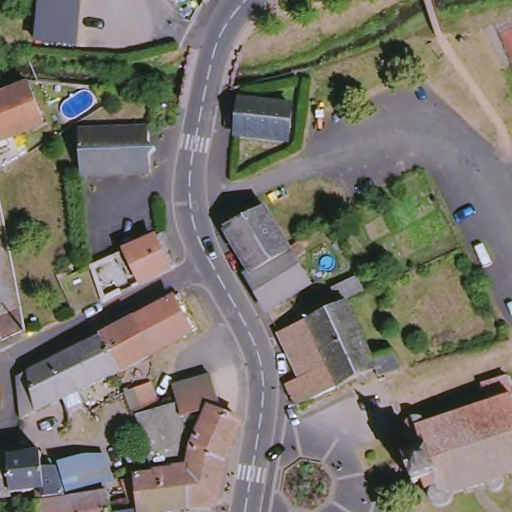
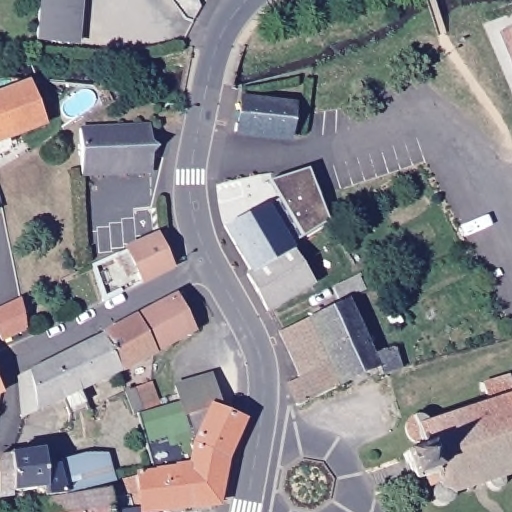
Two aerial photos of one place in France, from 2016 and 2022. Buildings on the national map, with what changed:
unchanged [(80,42),(40,39),(43,0),(83,0),(80,42)]
unchanged [(182,13),(172,0),(199,0),(204,10),(195,25),(182,13)]
unchanged [(29,84),(45,125),(0,144),(0,96),(29,84)]
unchanged [(292,107),(289,141),(237,135),(240,101),(292,107)]
unchanged [(87,176),(86,132),(157,131),(157,145),(163,152),(156,158),(157,174),(87,176)]
new [(269,209),(282,202),(270,182),(307,170),(327,220),(290,246),(269,209)]
unchanged [(227,232),(269,209),(292,251),(304,244),(310,254),(298,262),(315,291),(273,316),(252,281),(255,279),(227,232)]
unchanged [(176,265),(139,283),(127,251),(165,235),(176,265)]
unchanged [(344,302),(337,288),(361,276),(367,291),(344,302)]
unchanged [(138,315),(184,290),(202,327),(157,350),(138,315)]
unchanged [(305,380),(285,332),(352,301),(379,359),(395,352),(404,370),(379,380),(376,375),(302,409),(293,385),(305,380)]
unchanged [(105,332),(138,315),(157,350),(120,369),(105,332)]
unchanged [(22,373),(105,332),(120,369),(27,414),(22,373)]
unchanged [(512,381),(512,472),(509,473),(509,481),(505,486),(502,487),(496,486),(493,483),(492,478),(460,489),(457,498),(450,502),(444,503),(439,501),(435,496),(434,493),(432,485),(430,486),(427,477),(417,480),(407,451),(422,446),(422,441),(414,438),(410,434),(408,429),(408,423),(410,419),(413,415),(417,413),(423,412),(429,414),(435,420),(492,400),(489,386),(485,387),(484,377),(492,375),(493,380),(504,377),(504,373),(512,371),(512,381)]
unchanged [(184,402),(181,389),(215,380),(230,417),(215,411),(197,448),(184,402)]
unchanged [(129,392),(155,383),(165,409),(184,402),(197,448),(191,460),(194,467),(154,476),(137,420),(129,392)]
unchanged [(2,391),(0,392),(0,385),(2,391)]
unchanged [(194,467),(191,460),(197,448),(215,411),(230,417),(235,419),(247,423),(230,465),(220,507),(170,511),(165,512),(134,512),(128,493),(125,483),(154,476),(194,467)]
unchanged [(47,468),(52,467),(59,470),(62,475),(68,496),(48,500),(46,490),(15,494),(2,495),(0,466),(0,460),(13,458),(46,455),(47,468)]
unchanged [(74,495),(63,465),(89,459),(110,459),(118,484),(74,495)]
unchanged [(116,512),(42,512),(40,505),(113,495),(116,512)]

